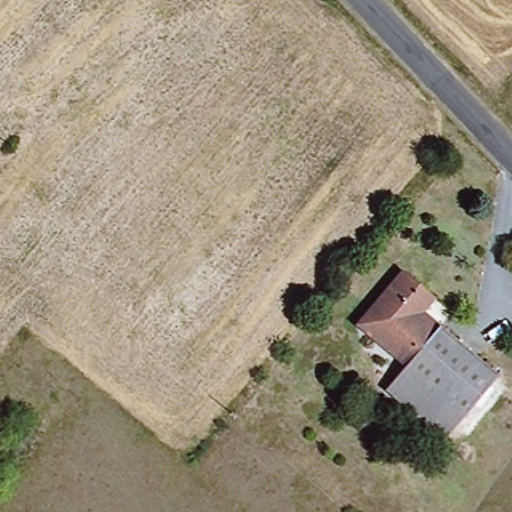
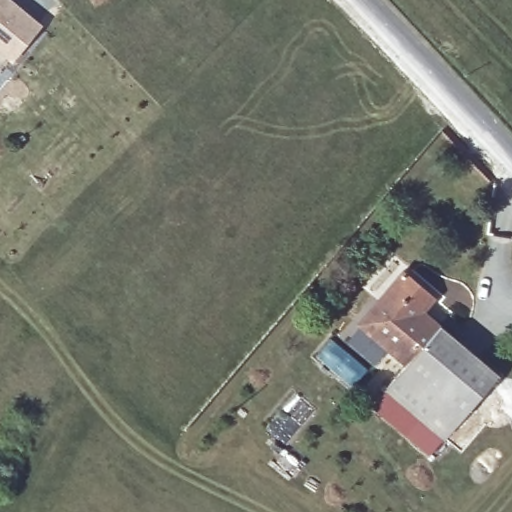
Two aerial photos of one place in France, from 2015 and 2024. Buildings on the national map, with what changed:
new [(11,61),(0,52),(0,0),(7,0),(40,26),(11,61)]
unchanged [(445,300),(429,317),(503,381),(453,440),(388,384),(407,363),(361,323),(408,268),(445,300)]

